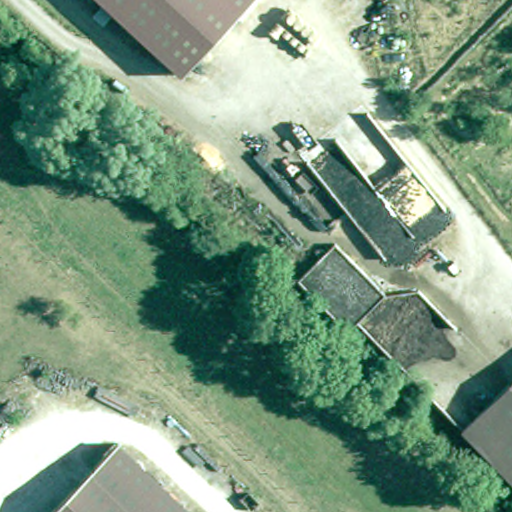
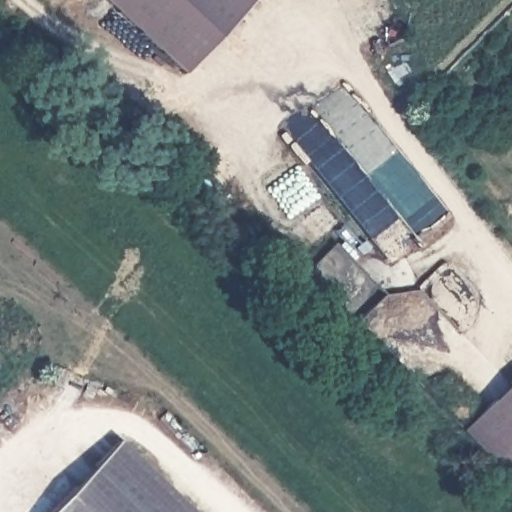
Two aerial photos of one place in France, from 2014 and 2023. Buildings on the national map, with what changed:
unchanged [(103,0),(254,0),(185,76),(103,0)]
unchanged [(383,294),(351,332),(300,282),(334,247),(383,294)]
unchanged [(460,432),(512,379),(512,486),(460,432)]
unchanged [(112,438),(190,512),(41,512),(112,438)]

